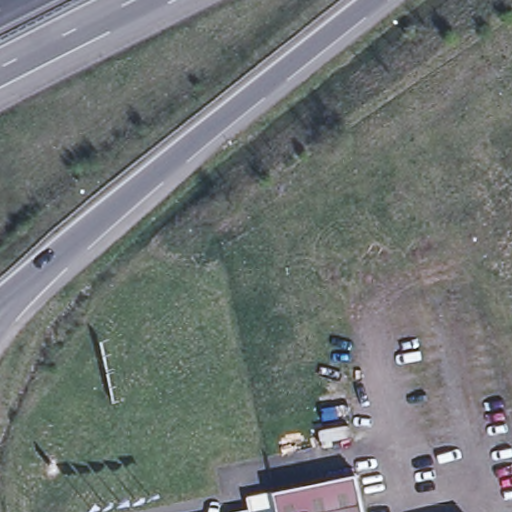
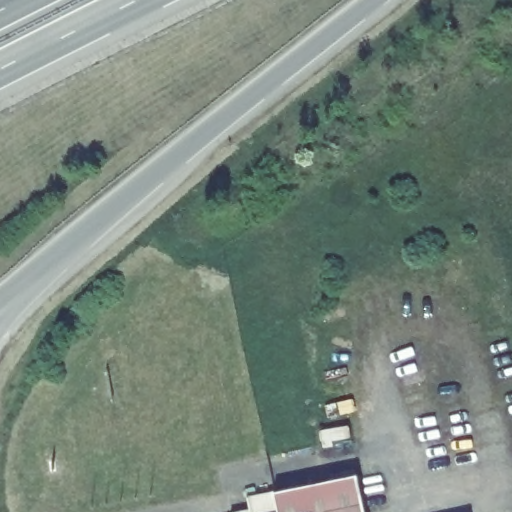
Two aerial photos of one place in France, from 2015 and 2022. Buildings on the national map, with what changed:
unchanged [(269,491),(352,474),(360,512),(273,512),(269,491)]

